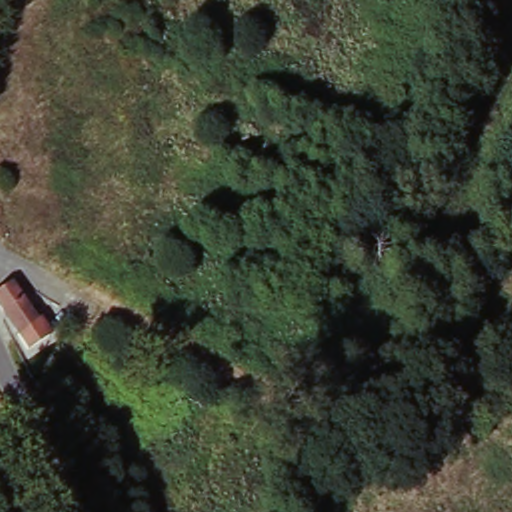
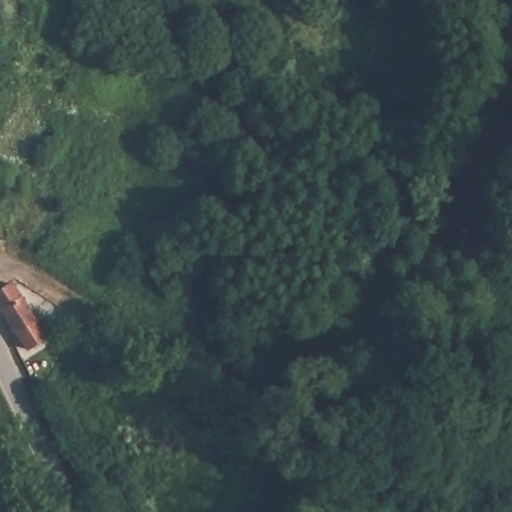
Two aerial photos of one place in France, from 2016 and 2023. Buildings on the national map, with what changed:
unchanged [(40,327),(22,338),(0,301),(0,297),(14,285),(40,327)]

